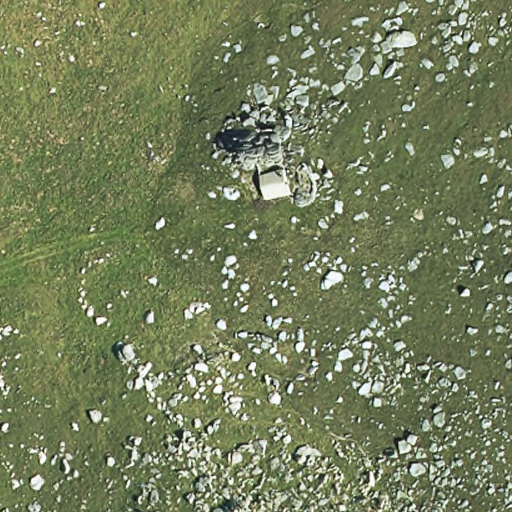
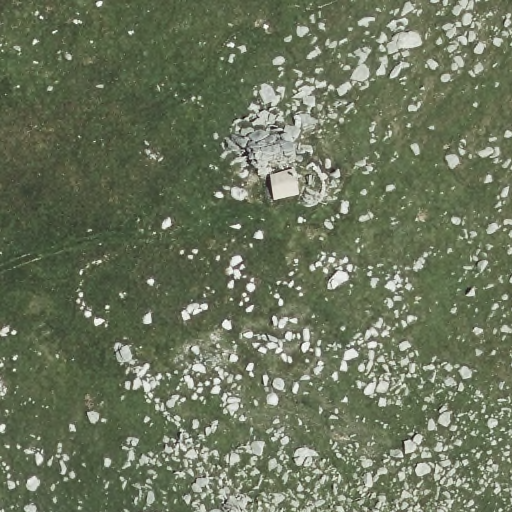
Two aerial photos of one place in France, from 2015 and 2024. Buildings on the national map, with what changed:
unchanged [(301,193),(273,199),(267,175),(296,170),(301,193)]

